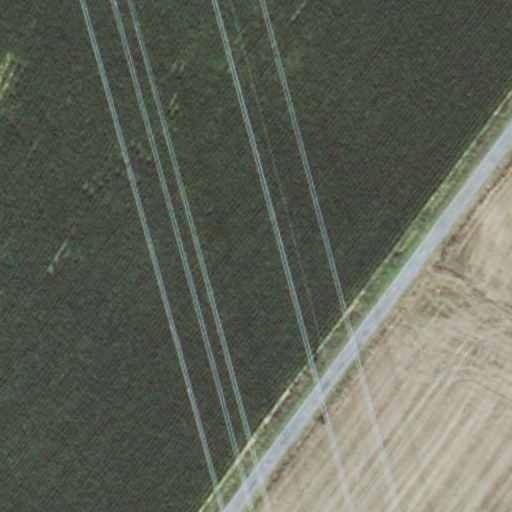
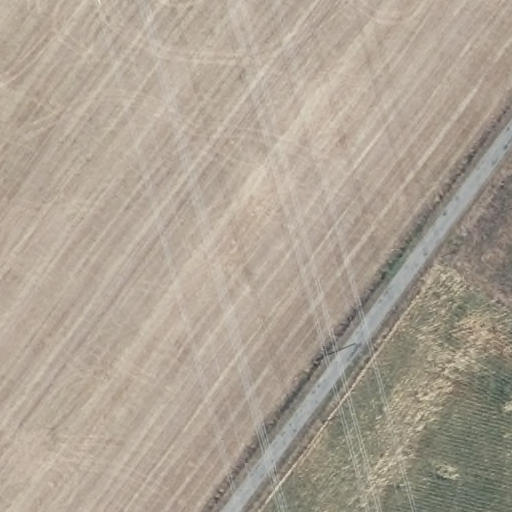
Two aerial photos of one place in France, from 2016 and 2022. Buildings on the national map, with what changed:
[]

